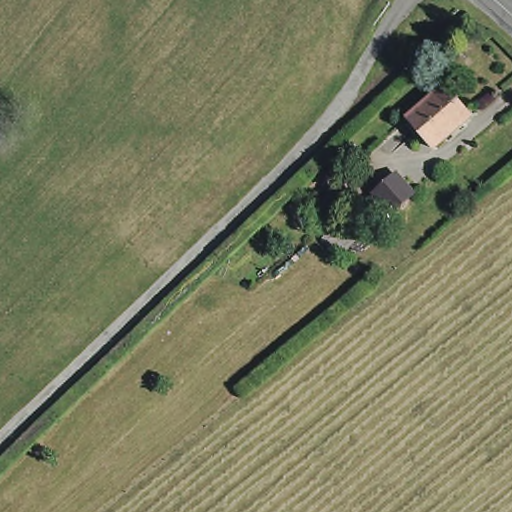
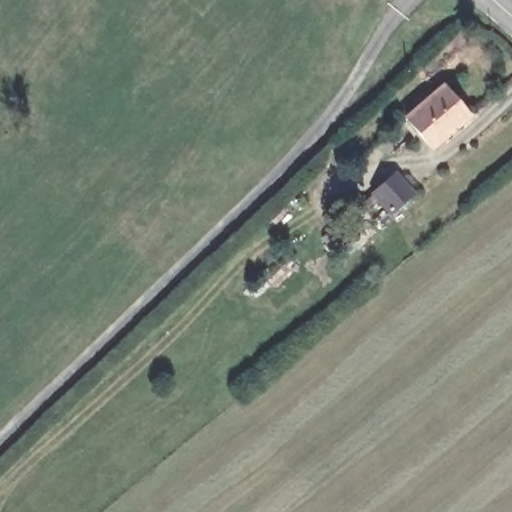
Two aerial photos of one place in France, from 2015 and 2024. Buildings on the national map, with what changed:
unchanged [(406,128),(445,95),(472,125),(432,157),(406,128)]
unchanged [(390,210),(373,192),(394,173),(412,192),(390,210)]
unchanged [(355,241),(346,248),(331,231),(340,224),(355,241)]

